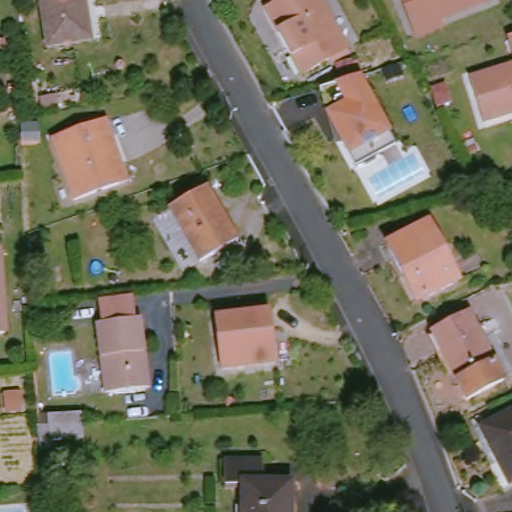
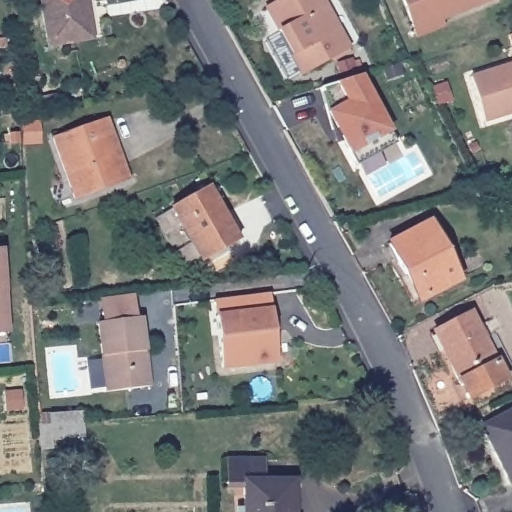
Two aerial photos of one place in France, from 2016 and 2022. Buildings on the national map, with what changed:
unchanged [(97,38),(53,47),(46,0),(90,0),(97,38)]
unchanged [(283,0),(327,0),(352,48),(306,73),(270,6),(283,0)]
unchanged [(421,36),(416,25),(405,0),(491,0),(443,20),(445,26),(421,36)]
unchanged [(484,123),(471,79),(512,66),(512,115),(484,123)]
unchanged [(387,152),(361,166),(333,114),(324,87),(363,75),(394,131),(401,144),(387,152)]
unchanged [(60,141),(110,121),(116,136),(133,180),(126,183),(85,200),(60,141)]
unchanged [(243,236),(208,259),(176,207),(213,185),(243,236)]
unchanged [(465,284),(432,302),(418,279),(409,283),(393,250),(433,227),(465,284)]
unchanged [(180,253),(163,267),(148,241),(167,229),(180,253)]
unchanged [(11,336),(0,337),(0,253),(6,252),(11,336)]
unchanged [(150,385),(108,387),(104,321),(108,320),(107,298),(137,298),(139,319),(145,319),(150,385)]
unchanged [(219,317),(274,313),(278,364),(224,367),(219,317)]
unchanged [(502,359),(512,381),(512,385),(472,407),(458,381),(436,331),(479,313),(502,359)]
unchanged [(28,403),(12,405),(10,387),(25,385),(28,403)]
unchanged [(53,405),(85,403),(85,415),(86,429),(54,430),(54,438),(44,438),(43,418),(53,417),(53,405)]
unchanged [(497,453),(504,449),(491,426),(512,415),(512,483),(497,453)]
unchanged [(230,486),(229,464),(268,464),(269,487),(297,487),(297,512),(251,512),(251,486),(230,486)]

